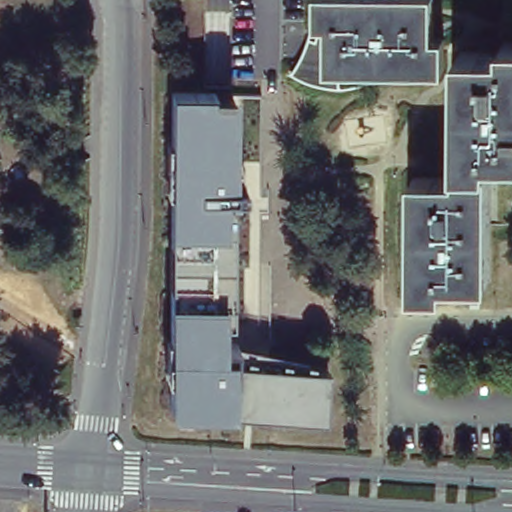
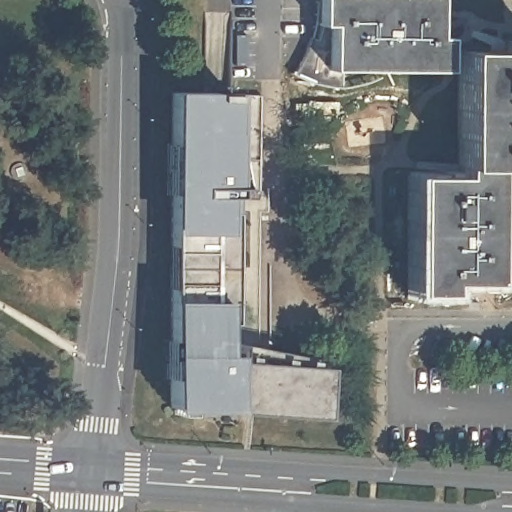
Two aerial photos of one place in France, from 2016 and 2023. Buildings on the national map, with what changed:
unchanged [(336,88),(332,87),(328,86),(322,86),(317,85),(311,83),(307,81),(305,81),(302,80),(298,78),(296,77),(293,76),(291,74),(293,71),(295,68),(296,65),(298,62),(300,59),(301,56),(302,53),(304,50),(305,48),(305,46),(306,44),(307,41),(308,38),(315,40),(320,24),(316,24),(316,0),(433,0),(433,37),(444,37),(444,69),(340,69),(340,88),(336,88)]
unchanged [(458,51),(503,51),(503,41),(512,41),(512,156),(490,156),(489,282),(444,282),(444,293),(412,293),(412,177),(457,177),(458,51)]
unchanged [(234,141),(245,203),(230,206),(232,330),(323,367),(323,416),(231,406),(175,406),(175,88),(234,89),(234,141)]

